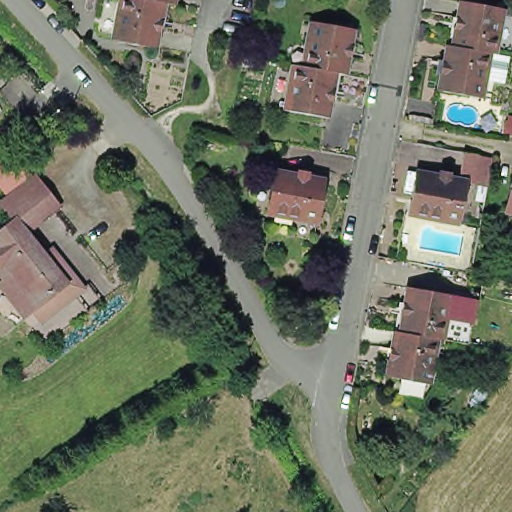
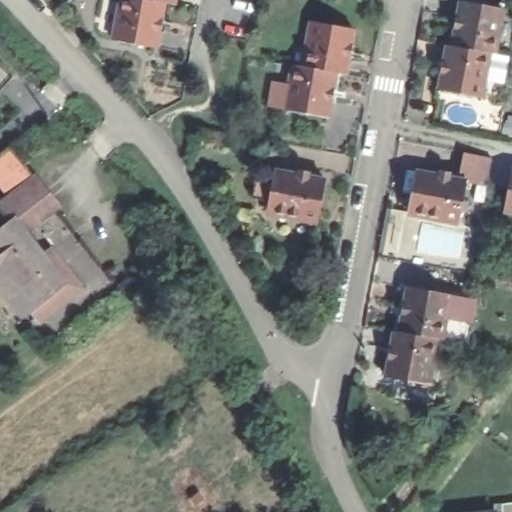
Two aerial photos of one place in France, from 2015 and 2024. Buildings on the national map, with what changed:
unchanged [(165,2),(156,47),(115,39),(123,0),(154,0),(165,2)]
unchanged [(175,3),(165,2),(154,0),(176,0),(175,3)]
unchanged [(461,2),(504,10),(496,54),(490,53),(453,46),(461,2)]
unchanged [(310,20),(352,28),(343,73),(333,71),(301,65),(310,20)]
unchanged [(448,45),(453,46),(490,53),(482,98),(440,90),(448,45)]
unchanged [(333,71),(325,117),(281,109),(290,63),(301,65),(333,71)]
unchanged [(10,195),(0,183),(0,155),(8,148),(31,178),(10,195)]
unchanged [(407,215),(415,171),(455,179),(460,152),(488,157),(484,184),(462,180),(455,223),(407,215)]
unchanged [(315,223),(268,213),(276,170),(324,180),(315,223)]
unchanged [(512,172),(512,213),(505,212),(512,172)]
unchanged [(11,223),(0,209),(0,203),(10,195),(31,178),(55,208),(23,234),(13,222),(11,223)]
unchanged [(0,276),(0,232),(11,223),(13,222),(23,234),(40,256),(49,250),(60,264),(81,290),(37,323),(27,311),(20,317),(0,293),(0,285),(4,281),(0,276)]
unchanged [(438,339),(434,338),(396,331),(404,287),(446,295),(438,339)]
unchanged [(472,300),(463,344),(438,339),(446,295),(472,300)]
unchanged [(382,375),(390,330),(396,331),(434,338),(425,382),(382,375)]
new [(512,503),(512,512),(503,512),(502,504),(512,503)]
new [(498,512),(472,512),(497,508),(498,512)]

